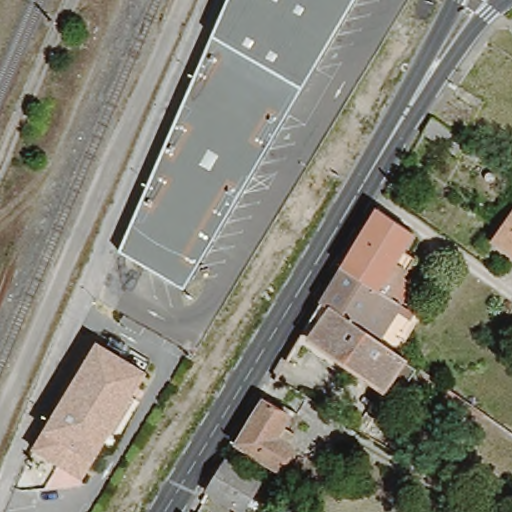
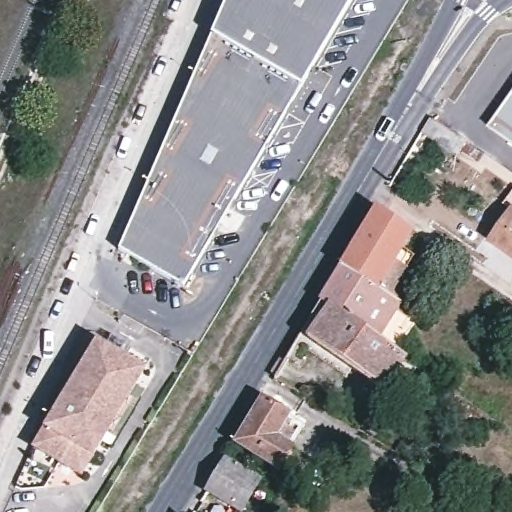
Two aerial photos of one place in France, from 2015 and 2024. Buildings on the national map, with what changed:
unchanged [(117,251),(228,0),(347,0),(182,287),(117,251)]
new [(512,93),(512,145),(489,129),(512,93)]
unchanged [(427,117),(434,121),(454,135),(445,150),(418,134),(427,117)]
unchanged [(415,316),(412,321),(393,349),(375,337),(319,300),(340,264),(375,207),(409,232),(399,249),(407,254),(410,257),(399,275),(410,282),(397,302),(393,309),(397,304),(415,316)]
unchanged [(507,215),(512,218),(512,263),(487,245),(507,215)]
unchanged [(393,349),(396,351),(402,356),(381,387),(350,366),(345,373),(302,346),(294,341),(319,300),(375,337),(393,349)]
unchanged [(77,476),(29,448),(91,342),(139,370),(77,476)]
unchanged [(452,399),(430,433),(415,425),(439,390),(452,399)]
unchanged [(285,440),(292,443),(278,466),(235,439),(260,397),(287,412),(274,433),(285,440)]
unchanged [(240,507),(205,487),(224,457),(257,479),(240,507)]

